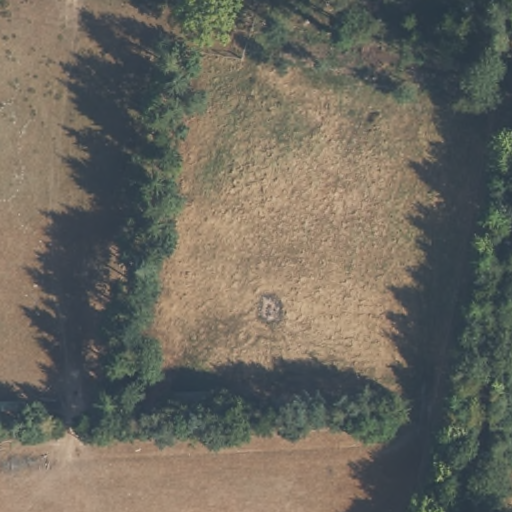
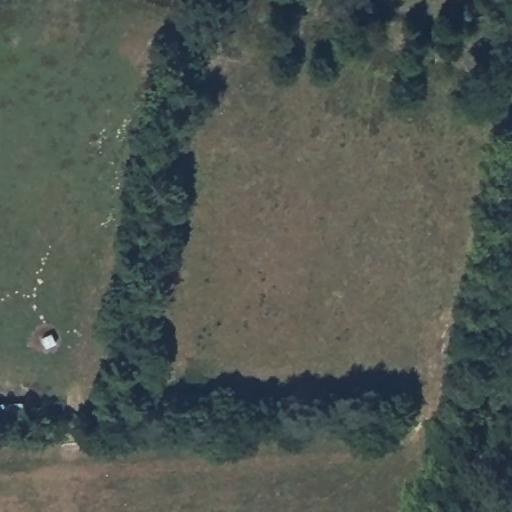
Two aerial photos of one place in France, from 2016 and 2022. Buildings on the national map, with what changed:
unchanged [(218,387),(218,412),(171,413),(171,390),(218,387)]
unchanged [(27,423),(0,422),(0,398),(27,398),(27,423)]

